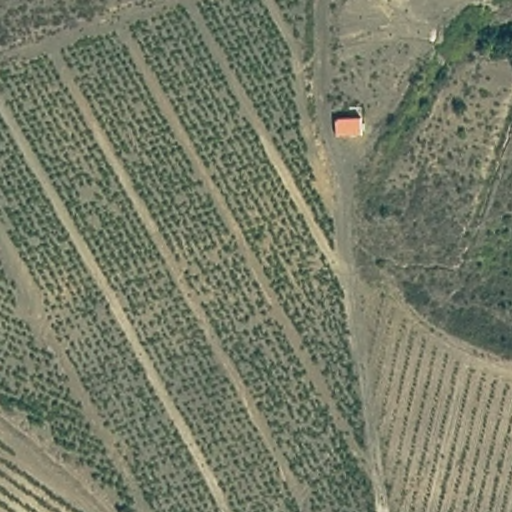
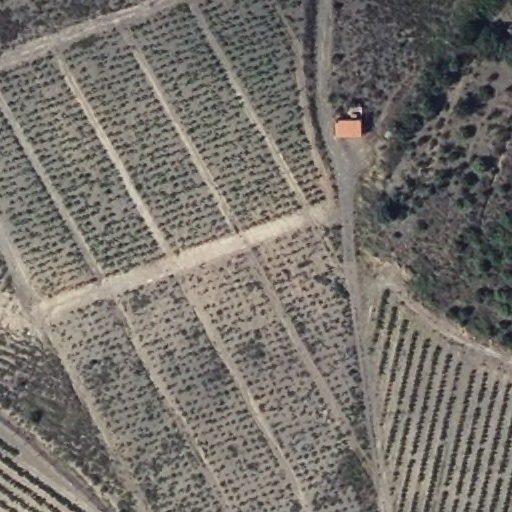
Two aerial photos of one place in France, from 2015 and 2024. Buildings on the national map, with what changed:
unchanged [(368,111),(368,128),(335,130),(335,112),(368,111)]

